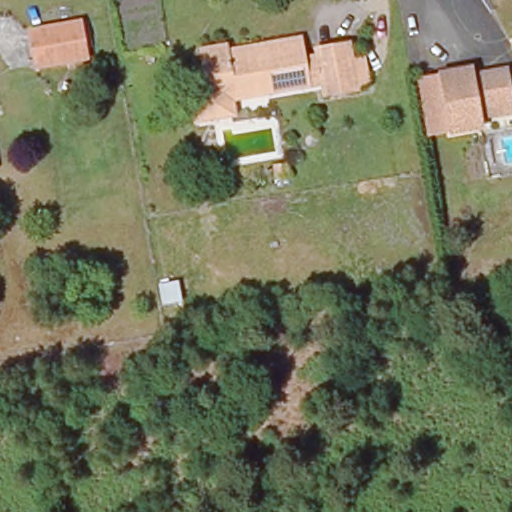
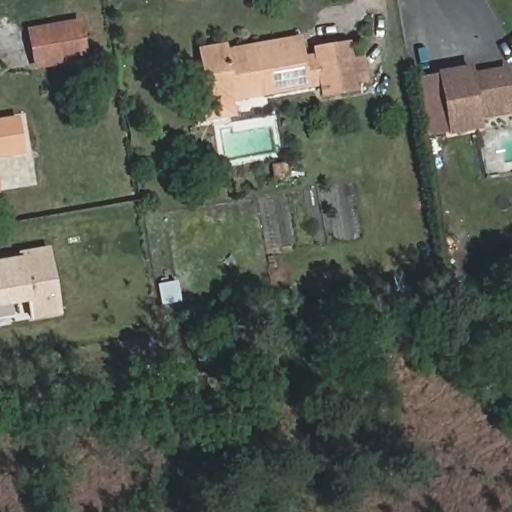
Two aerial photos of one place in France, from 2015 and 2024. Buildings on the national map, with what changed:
unchanged [(43,62),(36,27),(80,20),(86,55),(43,62)]
unchanged [(377,80),(363,83),(326,90),(324,77),(210,95),(199,40),(226,35),(228,45),(301,35),(304,52),(320,49),(319,43),(355,37),(358,54),(373,51),(377,80)]
unchanged [(487,112),(489,121),(429,132),(418,72),(474,60),(476,68),(510,63),(512,72),(512,108),(487,112)]
new [(25,156),(0,160),(0,119),(18,117),(25,156)]
new [(0,197),(0,190),(1,197),(0,197)]
new [(28,302),(0,307),(0,261),(20,258),(19,251),(50,247),(61,315),(31,321),(28,302)]

